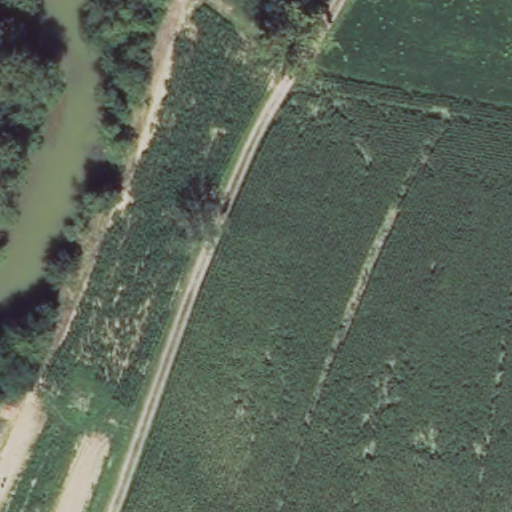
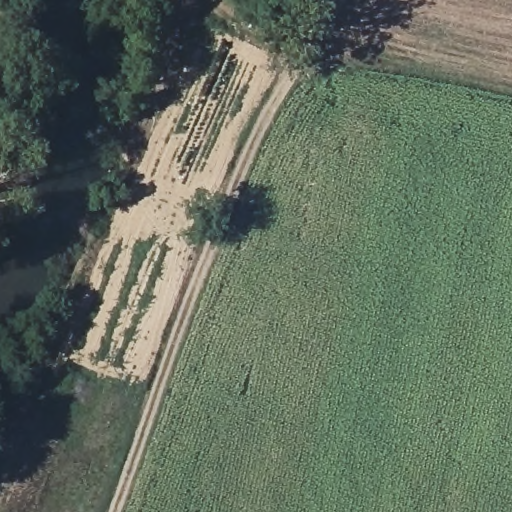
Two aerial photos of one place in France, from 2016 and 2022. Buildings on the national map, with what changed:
unchanged [(192,10),(176,45),(137,29),(149,0),(167,0),(192,10)]

